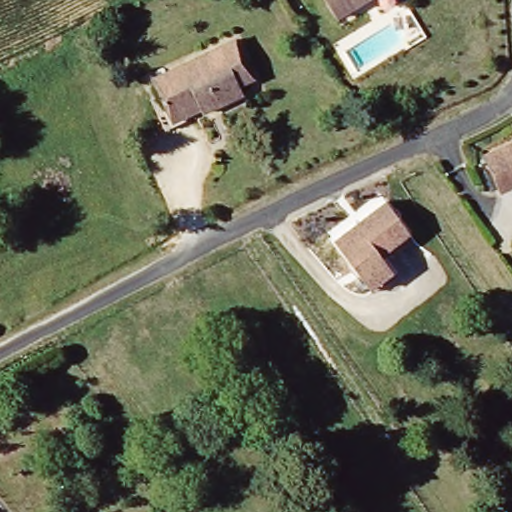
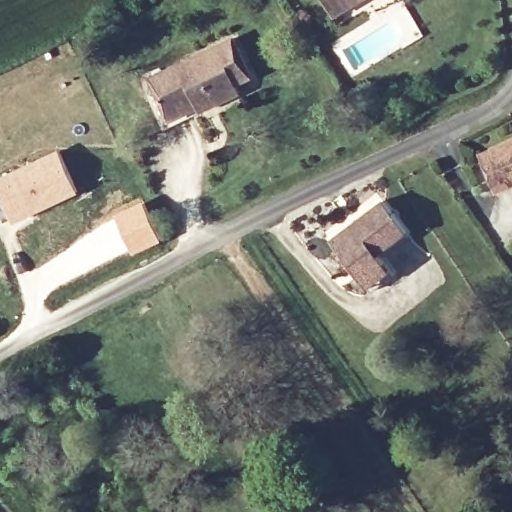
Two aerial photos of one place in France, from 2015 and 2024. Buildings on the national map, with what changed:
unchanged [(327,0),(357,0),(334,12),(327,0)]
unchanged [(242,75),(227,82),(230,92),(195,106),(187,92),(157,105),(144,76),(226,39),(242,75)]
unchanged [(498,194),(482,156),(512,143),(512,188),(498,194)]
new [(0,178),(58,149),(79,194),(14,222),(0,192),(0,178)]
unchanged [(334,236),(384,200),(422,254),(371,289),(334,236)]

